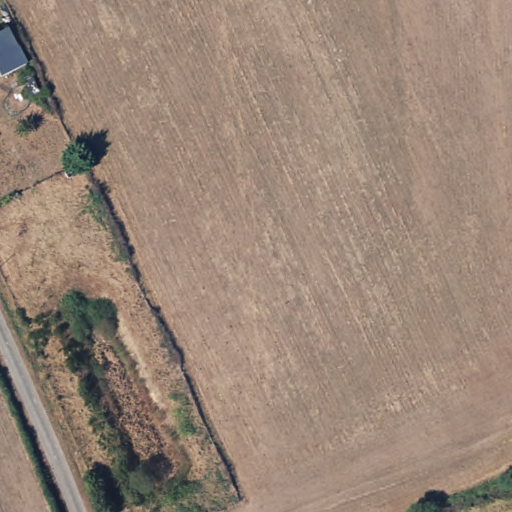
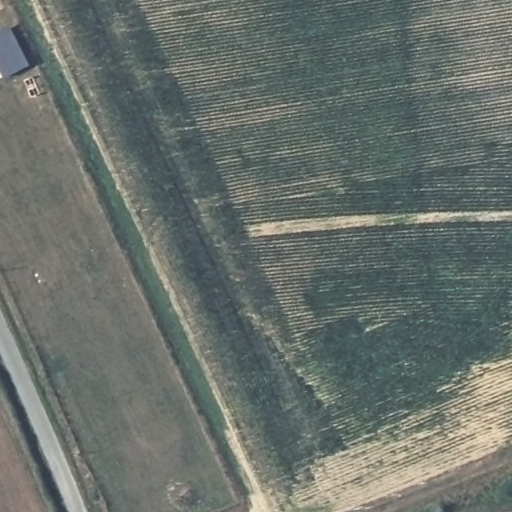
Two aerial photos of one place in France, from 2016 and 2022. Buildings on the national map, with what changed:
unchanged [(12,27),(29,59),(6,70),(0,59),(0,32),(12,27)]

